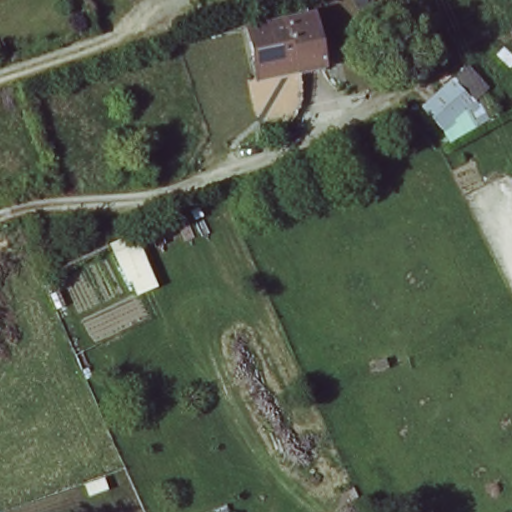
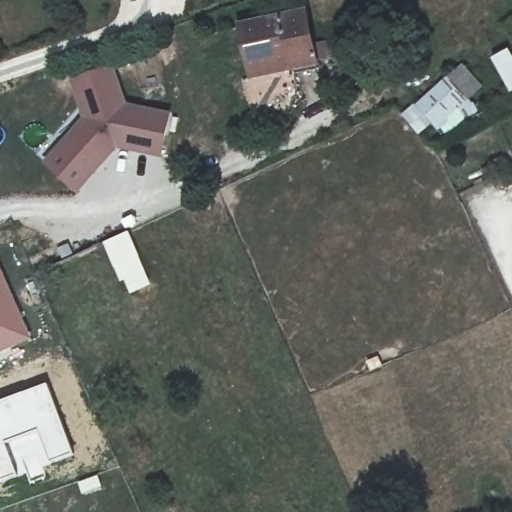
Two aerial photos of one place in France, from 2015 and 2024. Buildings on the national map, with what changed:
unchanged [(302,11),(317,60),(293,67),(290,57),(252,68),(240,29),(302,11)]
new [(161,158),(118,149),(78,194),(43,164),(83,119),(70,80),(116,66),(126,105),(171,114),(161,158)]
unchanged [(459,78),(474,106),(439,124),(424,96),(459,78)]
new [(104,244),(127,232),(154,283),(131,295),(104,244)]
new [(33,337),(0,352),(0,264),(33,337)]
new [(48,382),(76,456),(42,468),(45,475),(30,481),(26,472),(0,483),(0,401),(48,382)]

